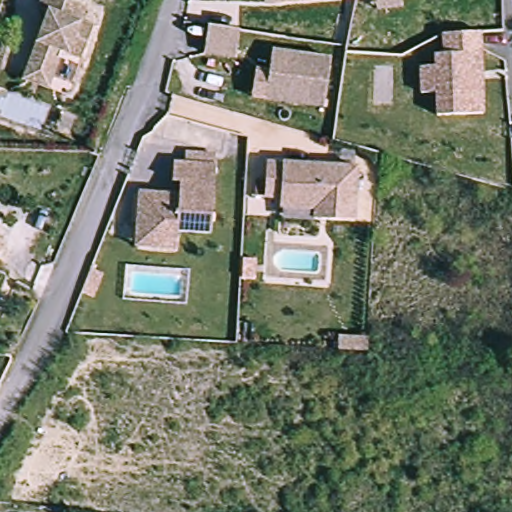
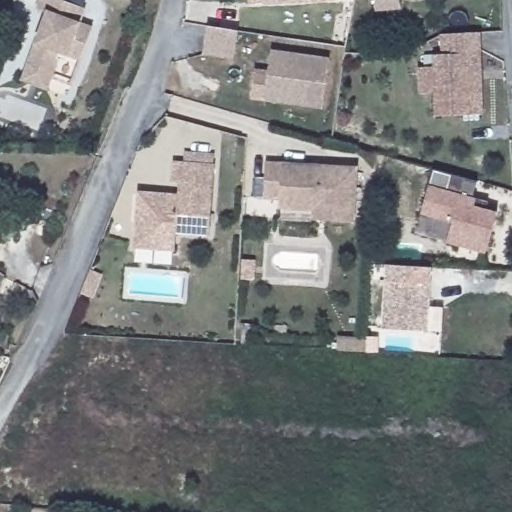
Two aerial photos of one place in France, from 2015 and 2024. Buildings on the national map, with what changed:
unchanged [(22,84),(26,72),(45,15),(36,12),(40,0),(55,0),(85,10),(79,25),(93,30),(81,62),(60,55),(51,80),(47,92),(22,84)]
unchanged [(253,0),(303,0),(270,2),(253,3),(253,0)]
unchanged [(401,10),(374,11),(373,0),(400,0),(401,10)]
unchanged [(190,54),(195,26),(227,31),(223,59),(190,54)]
unchanged [(485,114),(434,116),(433,94),(419,94),(418,67),(432,67),(432,55),(441,54),(441,34),(481,32),(485,114)]
unchanged [(261,50),(325,58),(317,107),(254,99),(238,97),(243,68),(259,70),(261,50)]
unchanged [(137,198),(175,200),(176,187),(168,186),(168,164),(182,165),(183,154),(218,156),(218,168),(213,238),(177,235),(176,242),(176,251),(135,249),(135,239),(137,198)]
unchanged [(256,196),(256,160),(353,163),(353,217),(309,216),(309,207),(269,205),(268,196),(256,196)]
new [(432,168),(477,180),(473,197),(476,197),(475,205),(497,212),(486,252),(447,241),(452,221),(420,212),(432,168)]
unchanged [(0,255),(0,237),(5,239),(0,255)]
new [(387,276),(403,277),(404,262),(431,264),(427,330),(384,328),(387,276)]

